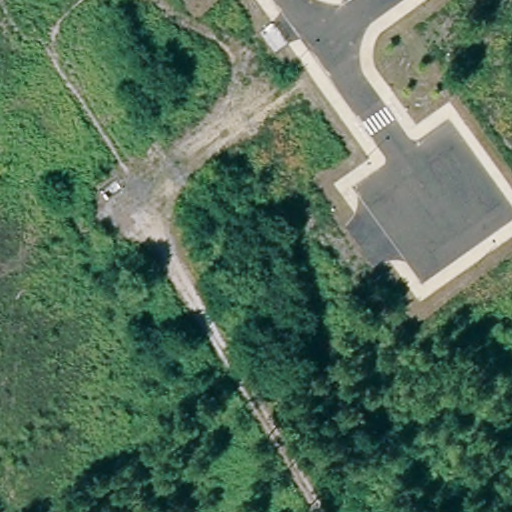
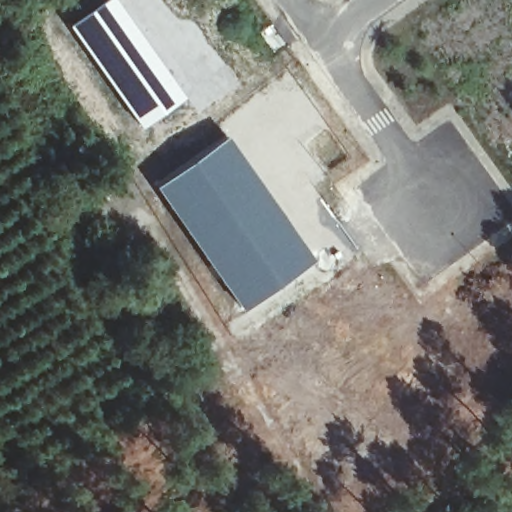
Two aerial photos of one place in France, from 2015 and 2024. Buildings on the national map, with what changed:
new [(116,0),(183,95),(140,125),(67,23),(101,0),(116,0)]
new [(227,134),(313,257),(241,309),(153,184),(227,134)]

